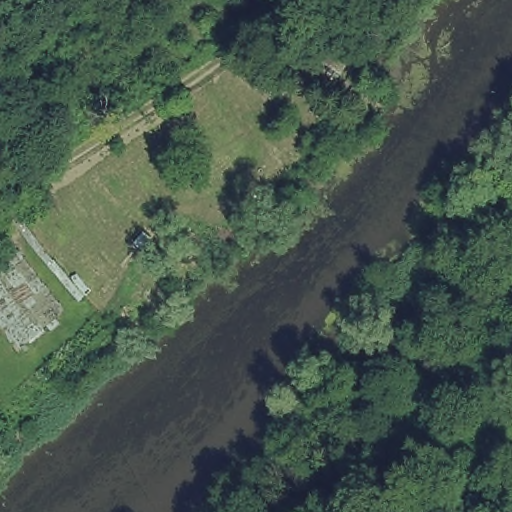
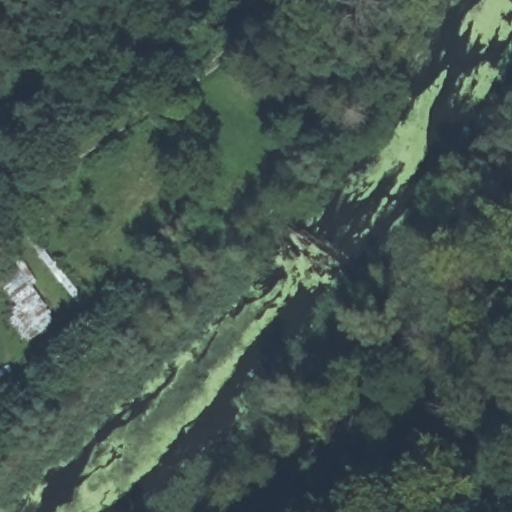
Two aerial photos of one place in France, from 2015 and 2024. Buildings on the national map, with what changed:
unchanged [(350,114),(313,98),(322,77),(361,92),(350,114)]

